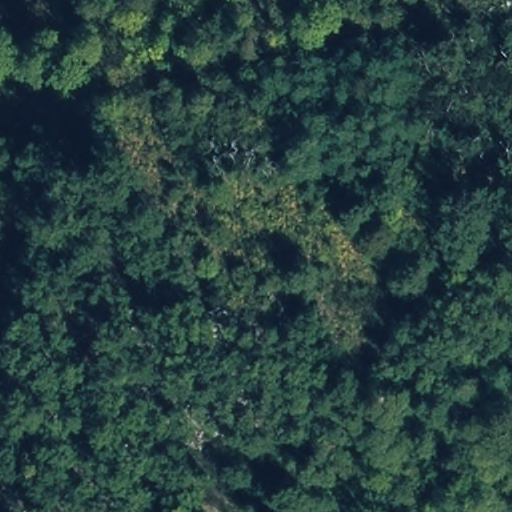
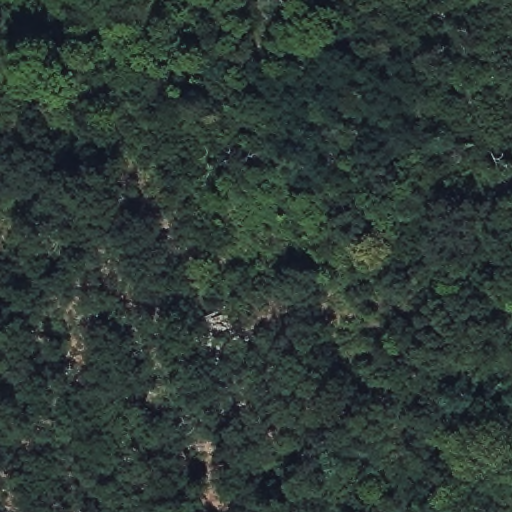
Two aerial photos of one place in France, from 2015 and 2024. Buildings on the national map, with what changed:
[]

